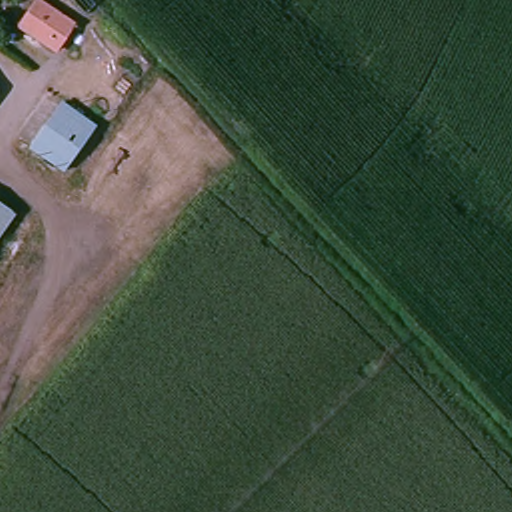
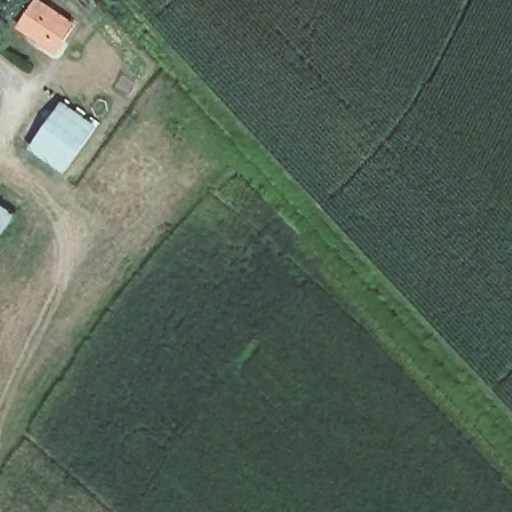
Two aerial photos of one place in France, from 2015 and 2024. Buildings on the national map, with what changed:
unchanged [(56,55),(18,26),(34,0),(55,0),(80,19),(56,55)]
unchanged [(27,147),(60,100),(95,125),(61,173),(27,147)]
unchanged [(10,210),(0,225),(0,203),(10,210)]

